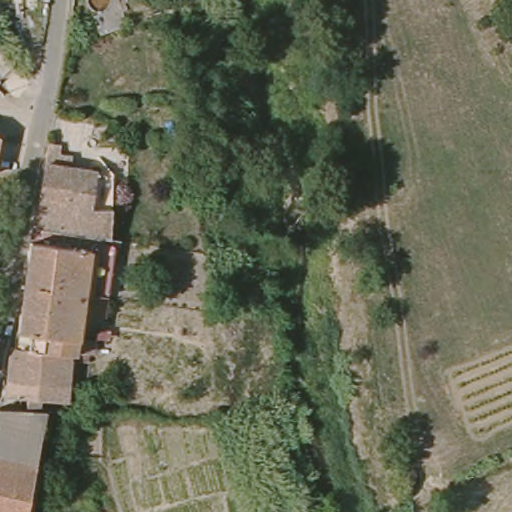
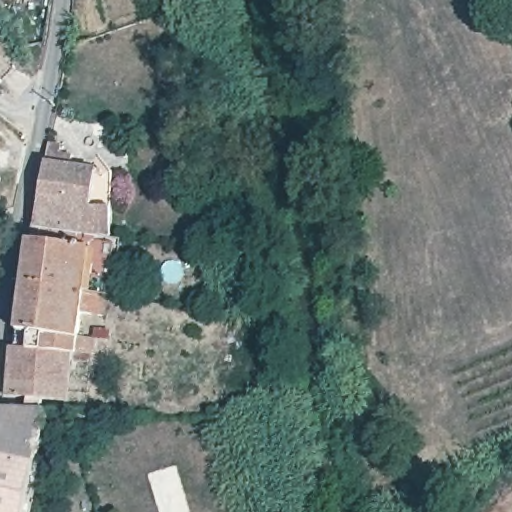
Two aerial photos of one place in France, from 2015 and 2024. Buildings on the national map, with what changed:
unchanged [(122,149),(100,149),(100,133),(122,132),(122,149)]
unchanged [(72,232),(41,228),(56,144),(70,146),(67,162),(101,169),(97,209),(105,210),(102,237),(72,232)]
unchanged [(41,228),(72,232),(72,247),(98,251),(93,295),(32,287),(41,228)]
unchanged [(32,287),(93,295),(113,297),(112,317),(90,313),(87,340),(102,342),(101,357),(77,354),(24,348),(28,318),(32,287)]
unchanged [(14,396),(18,348),(24,348),(77,354),(72,402),(49,400),(48,410),(33,409),(33,398),(14,396)]
unchanged [(0,428),(4,407),(33,409),(48,410),(52,410),(31,512),(0,512),(0,428)]

